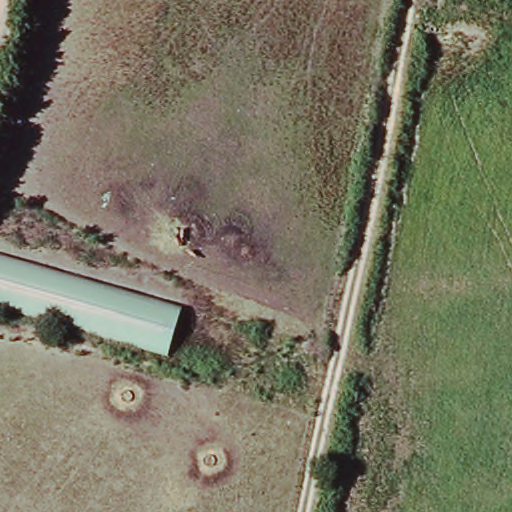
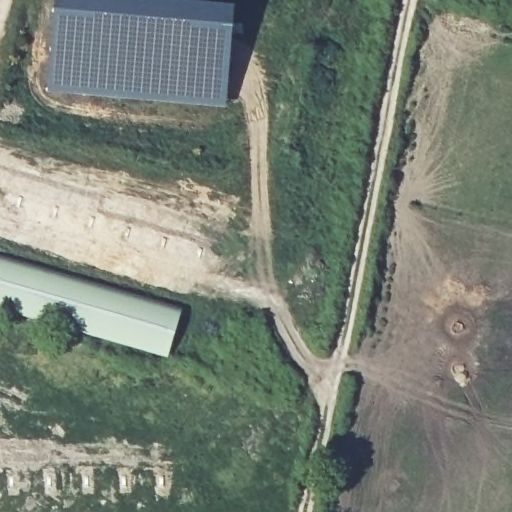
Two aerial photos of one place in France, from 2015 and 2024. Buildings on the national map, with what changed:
new [(67,0),(228,11),(223,90),(48,79),(53,0),(67,0)]
unchanged [(0,251),(106,284),(96,328),(0,299),(0,251)]
unchanged [(163,349),(96,328),(106,284),(176,304),(163,349)]

